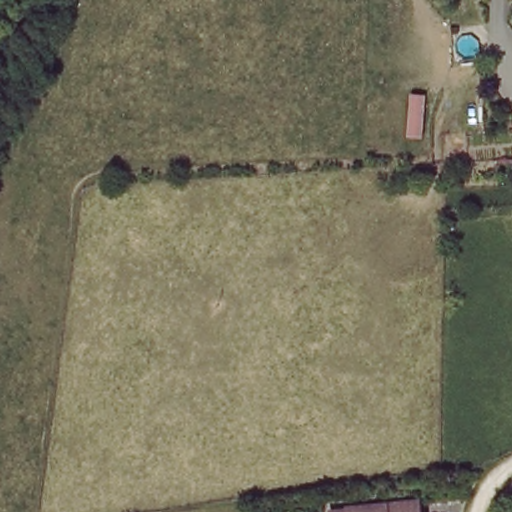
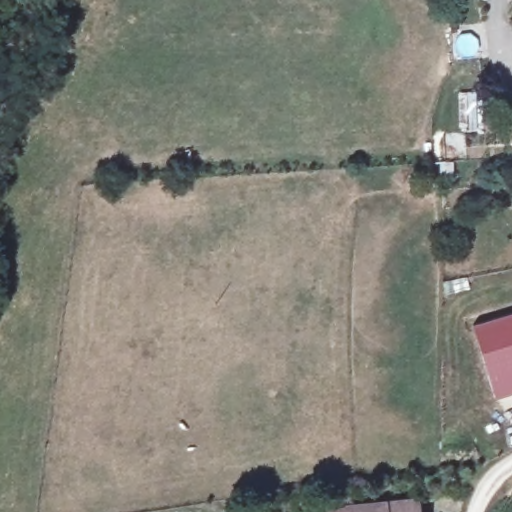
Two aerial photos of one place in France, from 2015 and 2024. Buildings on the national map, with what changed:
new [(473,325),(512,313),(512,393),(497,398),(473,325)]
unchanged [(340,511),(339,504),(413,492),(416,512),(336,512),(340,511)]

